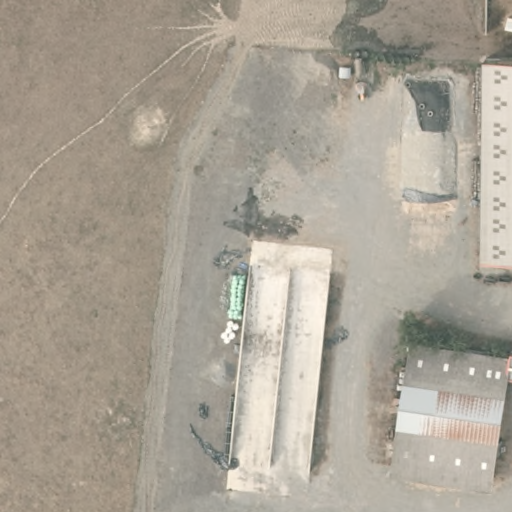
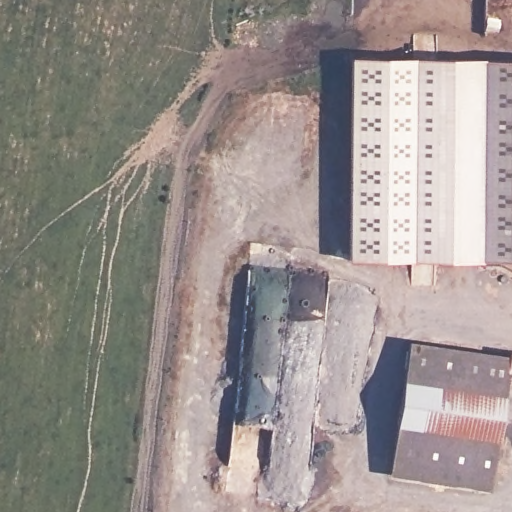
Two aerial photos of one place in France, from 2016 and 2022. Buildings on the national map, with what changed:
new [(480,260),(348,258),(350,58),(482,59),(480,260)]
unchanged [(482,59),(512,59),(512,260),(480,260),(482,59)]
unchanged [(512,379),(499,488),(395,478),(409,345),(512,358),(512,379)]

